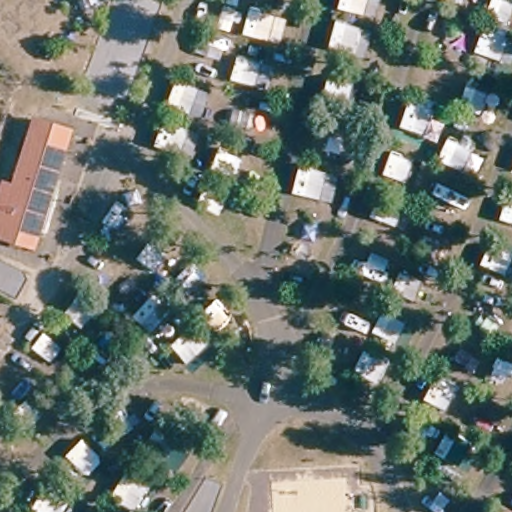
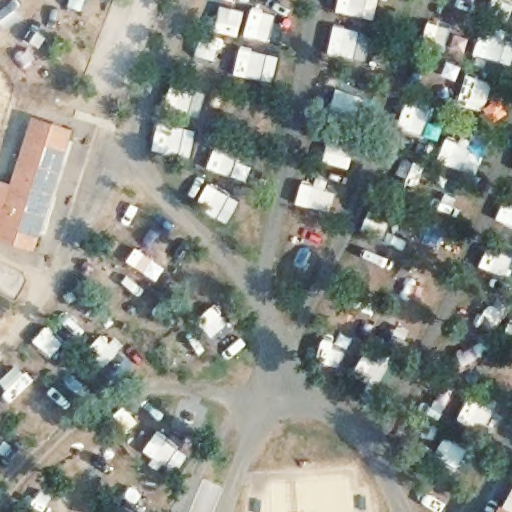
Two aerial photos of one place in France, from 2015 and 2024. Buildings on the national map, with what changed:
unchanged [(0,241),(0,225),(31,127),(64,138),(29,250),(0,241)]

